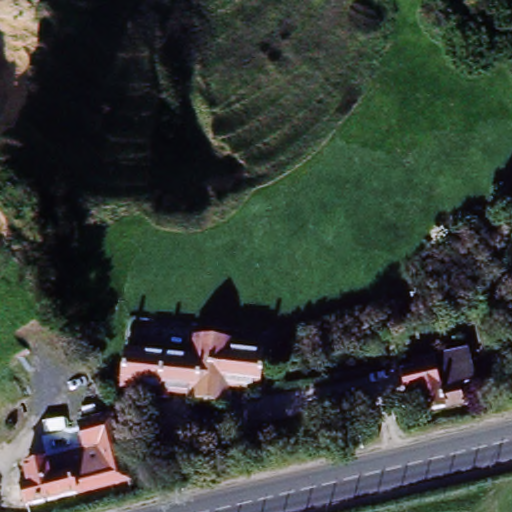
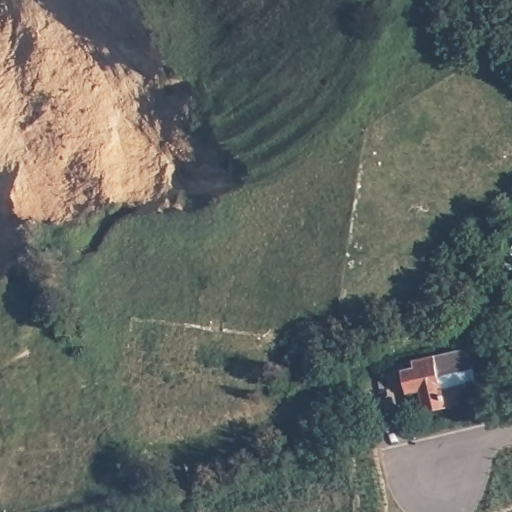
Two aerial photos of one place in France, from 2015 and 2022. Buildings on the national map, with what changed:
demolished [(206,338),(211,335),(223,336),(226,340),(235,341),(234,344),(264,348),(260,385),(229,382),(227,398),(190,393),(191,389),(124,380),(128,345),(195,352),(197,337),(206,338)]
unchanged [(471,350),(479,382),(465,385),(468,403),(430,412),(425,390),(414,393),(410,372),(420,370),(419,363),(471,350)]
demolished [(112,415),(130,481),(27,506),(21,482),(28,480),(25,466),(45,461),(50,479),(72,474),(74,475),(106,468),(99,443),(86,446),(80,423),(112,415)]

